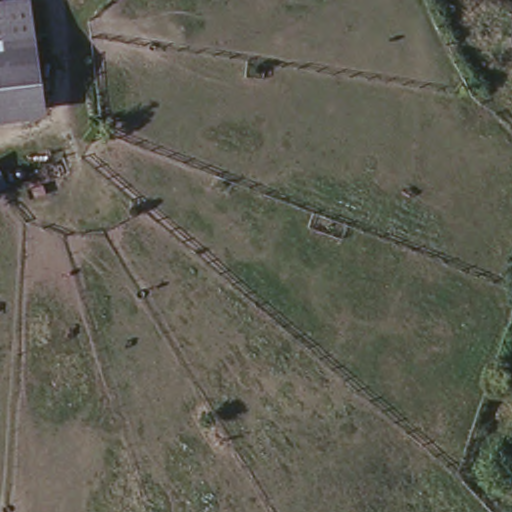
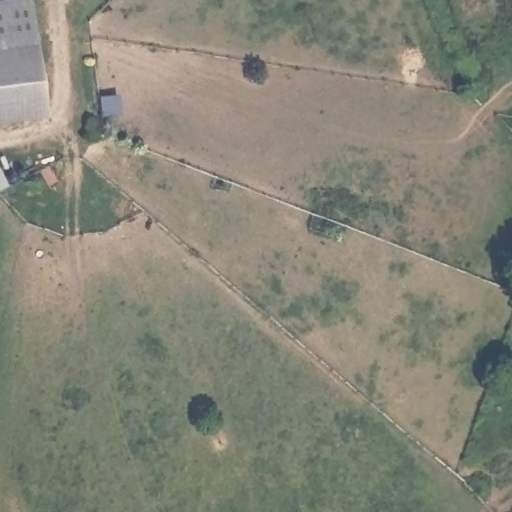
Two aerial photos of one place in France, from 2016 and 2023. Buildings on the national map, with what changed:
unchanged [(47,116),(0,123),(0,6),(31,1),(47,116)]

